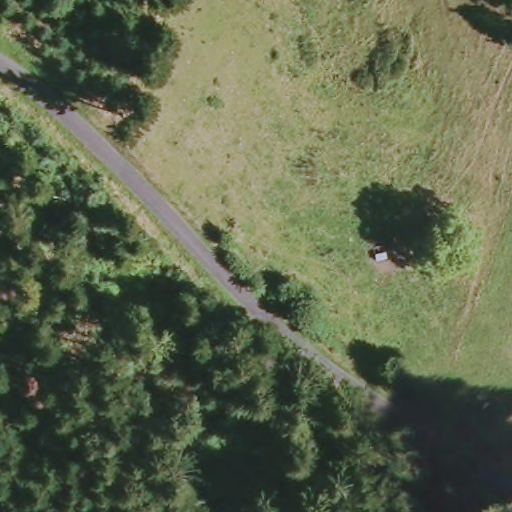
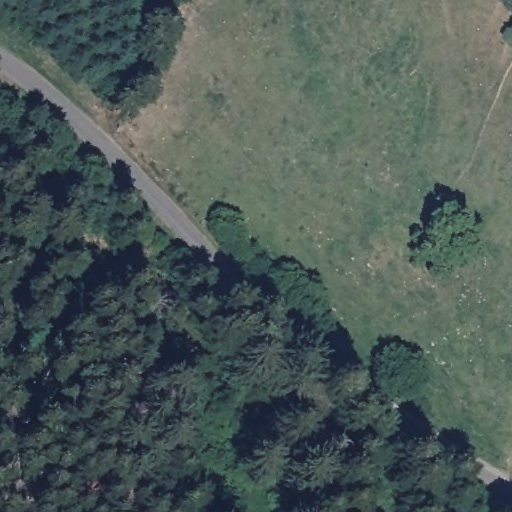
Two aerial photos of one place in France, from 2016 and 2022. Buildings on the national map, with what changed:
[]

